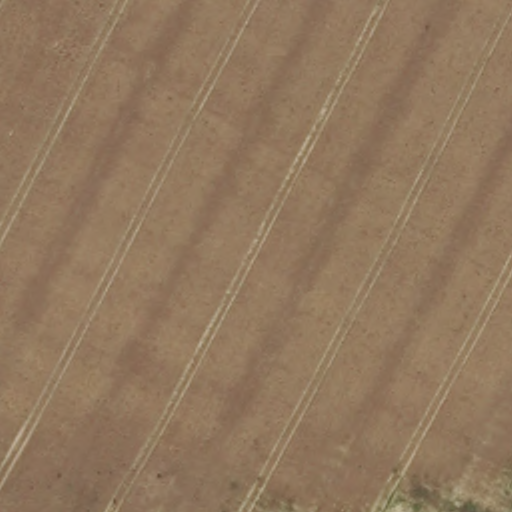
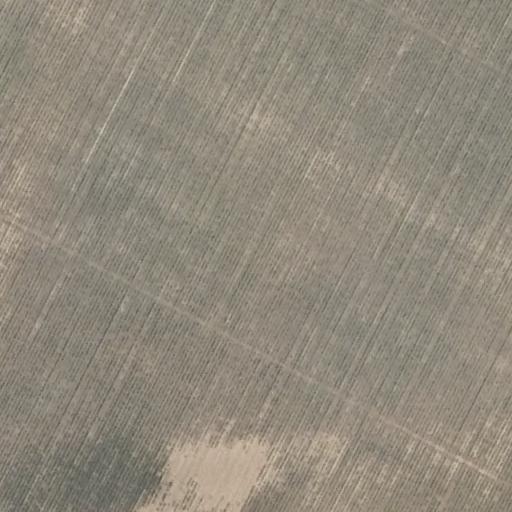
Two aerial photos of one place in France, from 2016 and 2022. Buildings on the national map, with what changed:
[]

